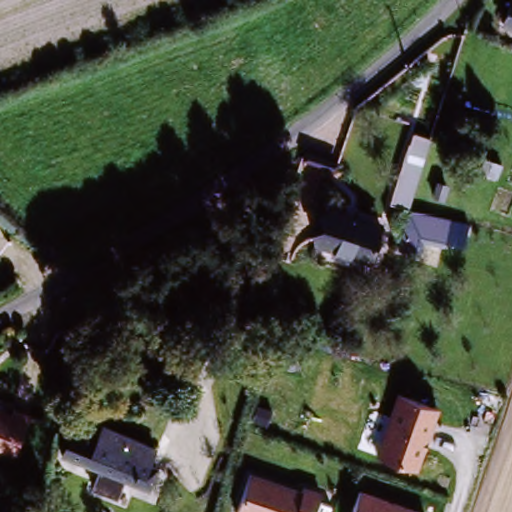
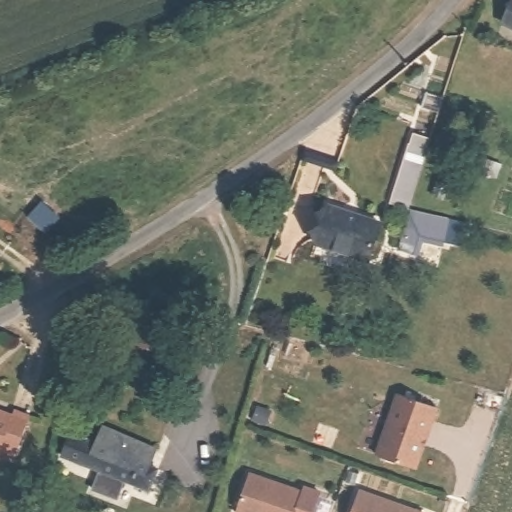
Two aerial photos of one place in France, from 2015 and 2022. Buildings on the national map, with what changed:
unchanged [(503,36),(512,17),(512,39),(503,36)]
unchanged [(428,140),(409,206),(388,199),(409,132),(428,140)]
unchanged [(370,264),(316,247),(328,210),(381,225),(370,264)]
unchanged [(407,212),(447,222),(442,246),(419,242),(416,255),(395,250),(407,212)]
unchanged [(117,344),(124,321),(169,335),(162,358),(117,344)]
unchanged [(378,457),(397,396),(437,411),(416,471),(378,457)]
unchanged [(11,413),(26,419),(12,457),(0,452),(0,415),(9,418),(11,413)]
unchanged [(90,447),(96,425),(161,447),(155,468),(90,447)]
unchanged [(155,468),(147,494),(57,464),(65,439),(90,447),(155,468)]
unchanged [(250,473),(302,491),(304,487),(321,492),(314,512),(238,512),(250,473)]
unchanged [(360,491),(420,512),(353,512),(360,491)]

